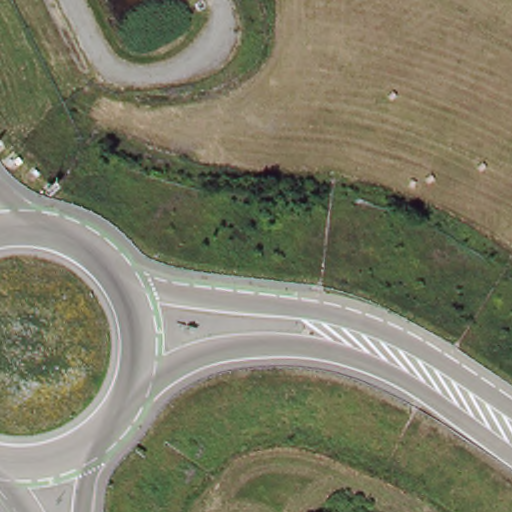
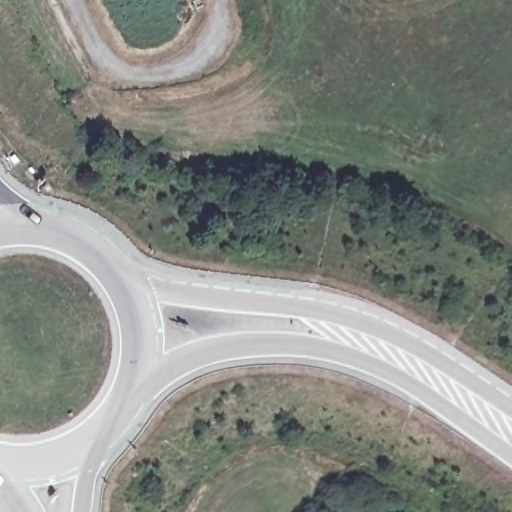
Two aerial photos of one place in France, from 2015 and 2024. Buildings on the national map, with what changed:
[]

